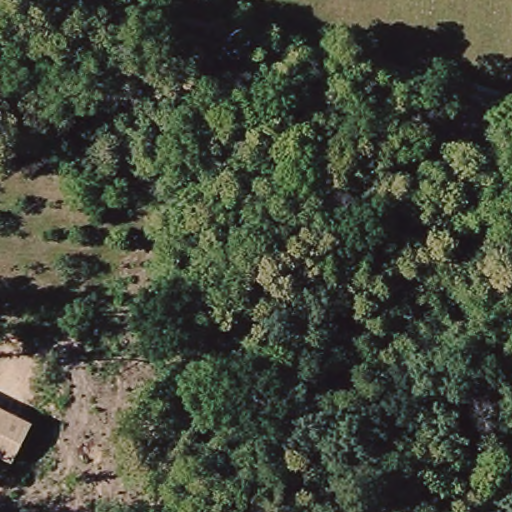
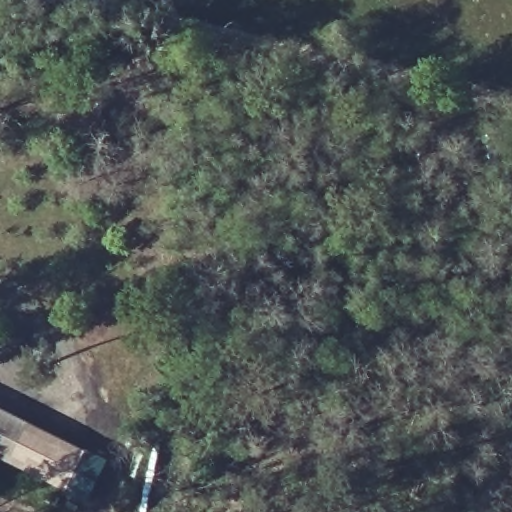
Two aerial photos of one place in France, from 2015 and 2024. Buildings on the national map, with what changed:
unchanged [(60,106),(64,85),(110,93),(105,116),(60,106)]
unchanged [(30,425),(10,466),(0,460),(0,409),(30,425)]
new [(85,452),(65,493),(10,466),(30,425),(85,452)]

